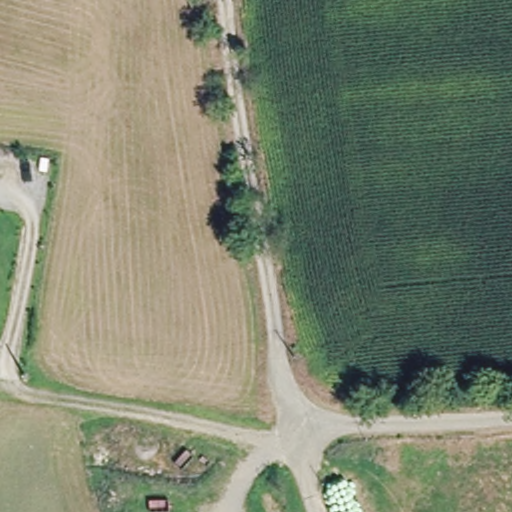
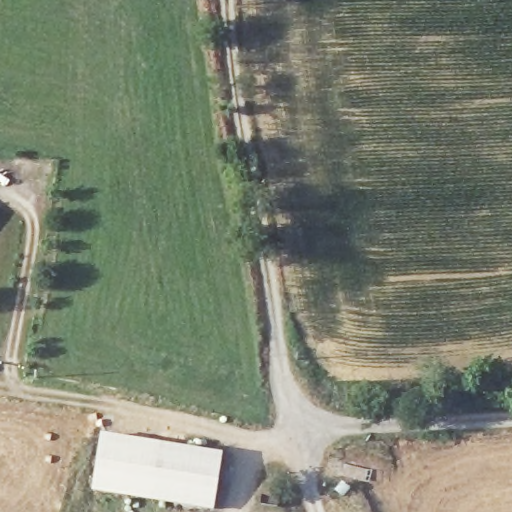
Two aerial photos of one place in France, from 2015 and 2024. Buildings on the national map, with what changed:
new [(103,432),(222,455),(212,510),(93,487),(103,432)]

